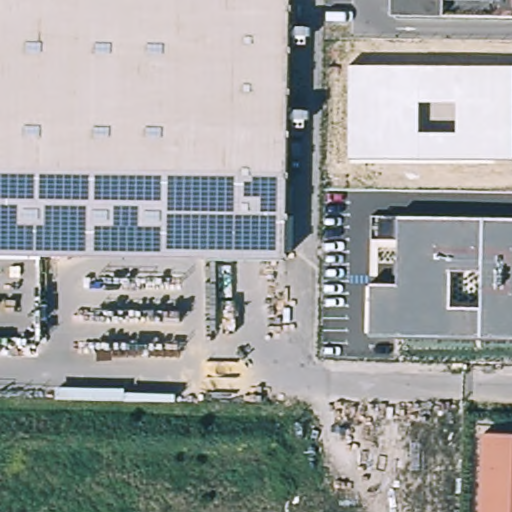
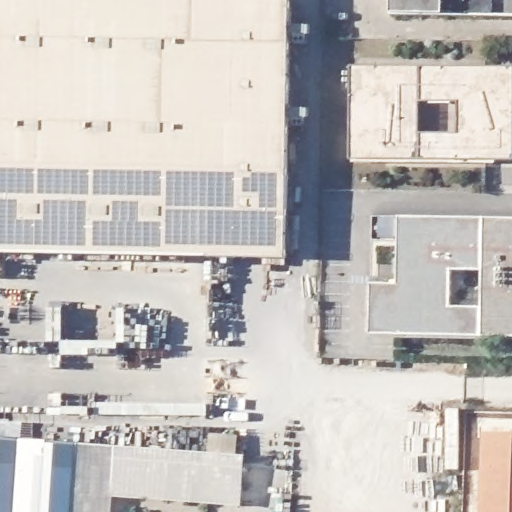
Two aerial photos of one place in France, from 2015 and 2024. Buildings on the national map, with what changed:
unchanged [(213,257),(215,175),(0,170),(0,0),(293,0),(288,259),(213,257)]
unchanged [(394,15),(394,0),(512,0),(512,17),(394,15)]
unchanged [(348,159),(348,67),(512,67),(512,159),(348,159)]
unchanged [(213,257),(0,253),(0,170),(215,175),(213,257)]
unchanged [(512,219),(512,337),(369,334),(369,285),(398,286),(398,239),(372,240),(373,217),(399,216),(512,219)]
unchanged [(485,433),(512,434),(512,512),(482,512),(485,433)]
new [(0,440),(78,444),(73,512),(0,512),(0,440)]
new [(241,506),(111,497),(111,512),(73,512),(78,444),(244,456),(241,506)]

